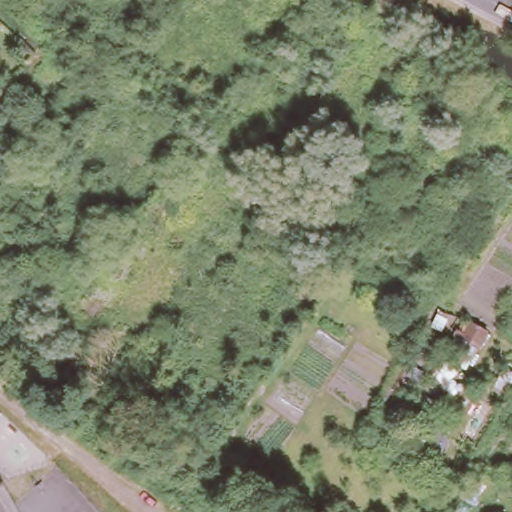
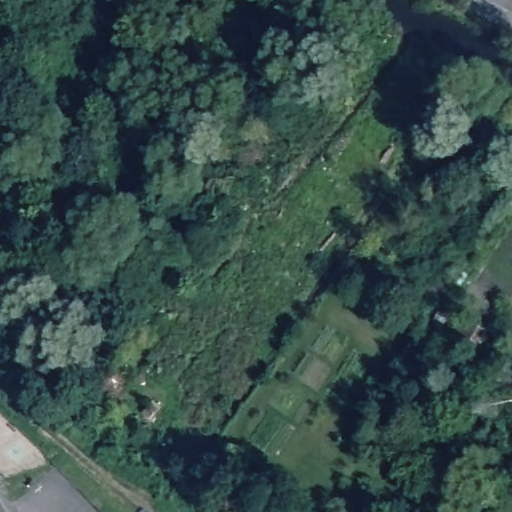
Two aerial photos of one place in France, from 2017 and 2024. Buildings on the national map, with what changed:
unchanged [(470,324),(483,332),(474,348),(460,340),(470,324)]

